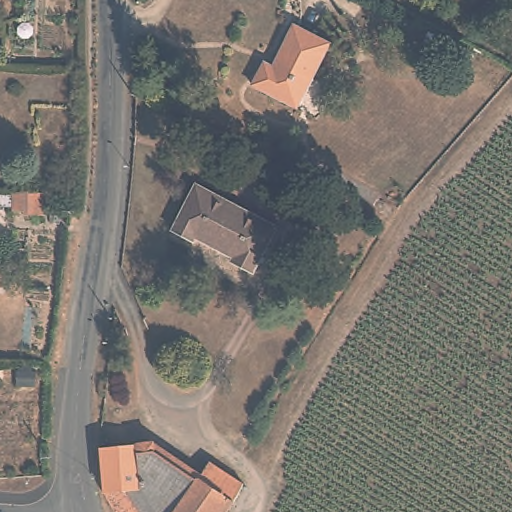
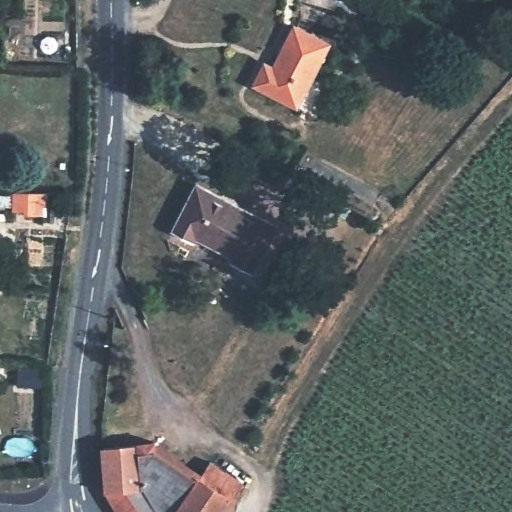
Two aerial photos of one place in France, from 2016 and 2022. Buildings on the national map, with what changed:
unchanged [(261,62),(269,67),(291,26),(331,47),(295,111),(248,87),(261,62)]
unchanged [(195,182),(220,196),(216,204),(246,219),(251,212),(278,226),(251,271),(232,260),(237,251),(203,232),(197,242),(171,229),(195,182)]
unchanged [(152,452),(198,481),(209,464),(241,485),(227,507),(194,488),(179,512),(115,512),(104,494),(102,457),(152,452)]
unchanged [(226,507),(227,507),(225,512),(179,512),(194,488),(226,507)]

